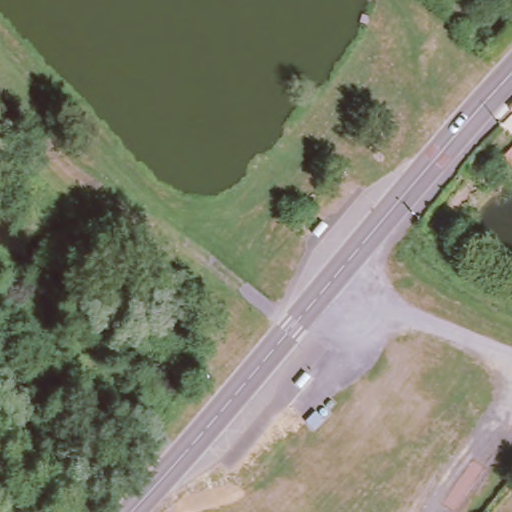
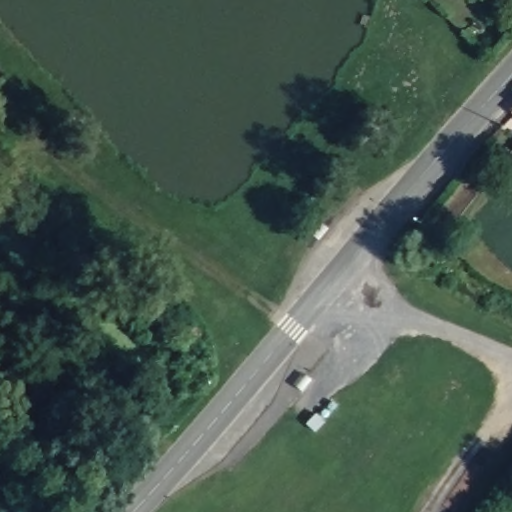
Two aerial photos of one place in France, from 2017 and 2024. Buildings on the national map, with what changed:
unchanged [(512,114),(509,111),(512,107),(512,114)]
unchanged [(501,157),(502,156),(512,144),(512,167),(507,163),(501,157)]

